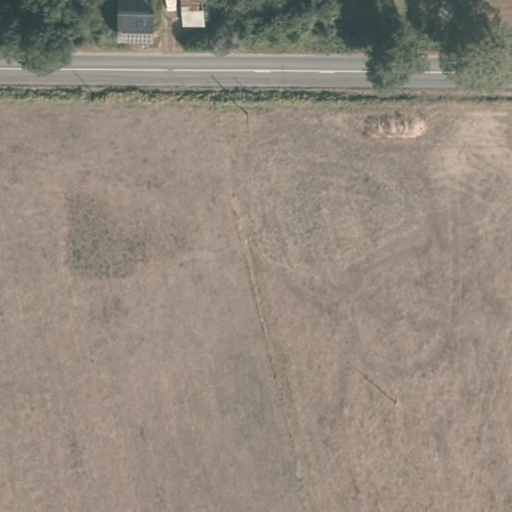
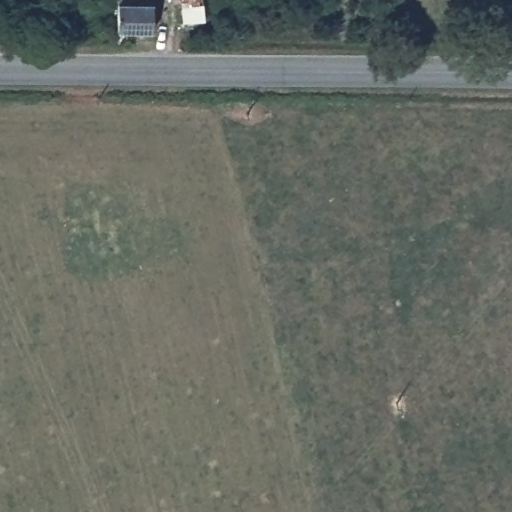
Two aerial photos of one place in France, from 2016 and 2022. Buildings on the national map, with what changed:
unchanged [(116,31),(115,0),(149,0),(150,30),(116,31)]
unchanged [(176,26),(174,0),(202,0),(204,26),(176,26)]

